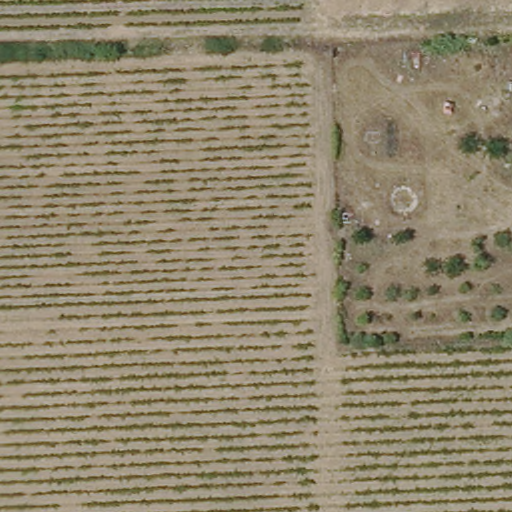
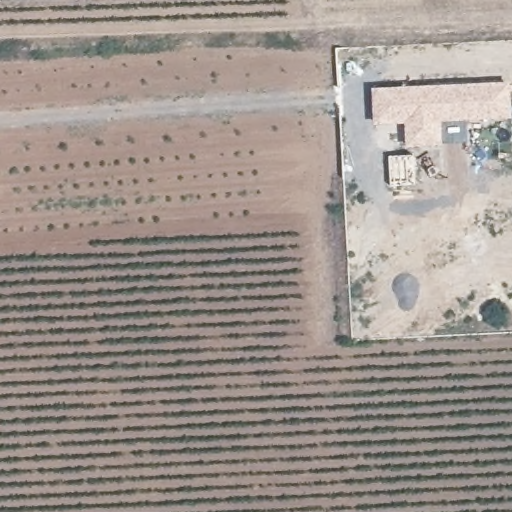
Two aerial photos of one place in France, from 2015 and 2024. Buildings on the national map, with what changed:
new [(508,81),(511,119),(440,121),(441,145),(405,147),(403,123),(373,124),(371,88),(508,81)]

